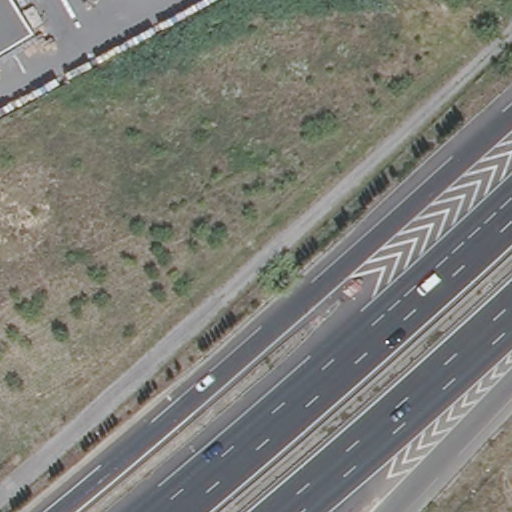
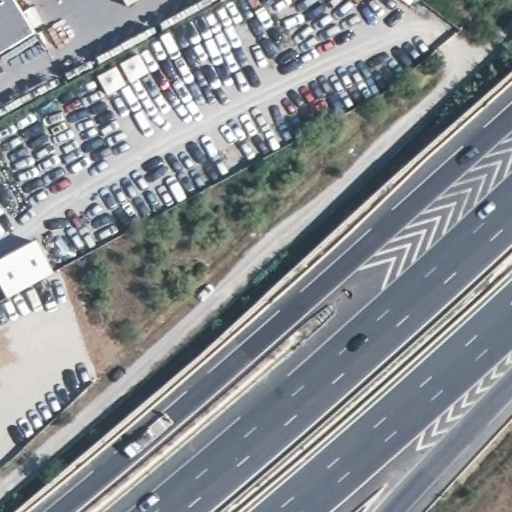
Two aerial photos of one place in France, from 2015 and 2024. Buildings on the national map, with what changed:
unchanged [(33,35),(0,56),(0,0),(11,0),(33,35)]
new [(53,273),(7,298),(0,285),(0,258),(35,240),(53,273)]

